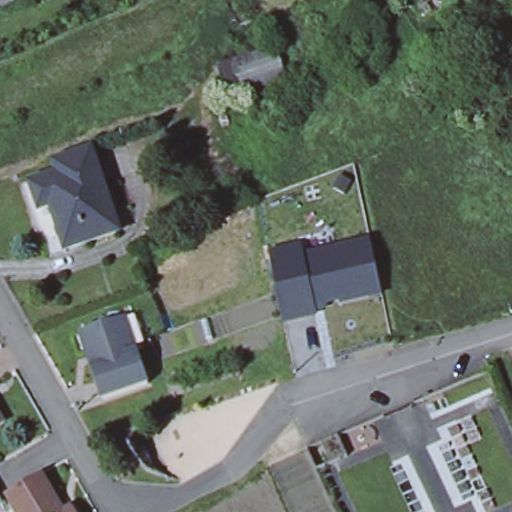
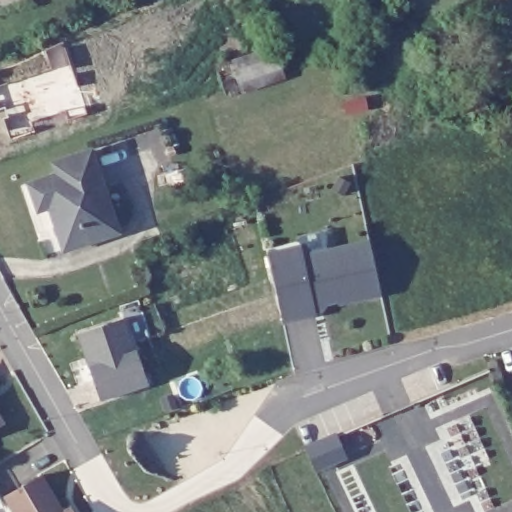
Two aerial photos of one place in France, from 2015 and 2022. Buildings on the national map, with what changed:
new [(52,70),(46,52),(66,44),(88,116),(69,122),(67,114),(31,124),(34,134),(11,139),(4,119),(8,118),(7,109),(0,111),(0,88),(52,70)]
unchanged [(216,62),(265,48),(275,82),(227,95),(216,62)]
unchanged [(68,245),(61,222),(44,228),(41,219),(36,205),(42,202),(34,179),(63,170),(59,158),(95,146),(96,147),(87,151),(98,182),(106,179),(110,192),(122,227),(68,245)]
unchanged [(383,300),(317,313),(319,320),(286,325),(272,253),(305,246),(308,255),(370,241),(383,300)]
unchanged [(77,331),(127,316),(149,386),(98,402),(77,331)]
new [(336,435),(345,456),(314,470),(305,449),(336,435)]
unchanged [(31,512),(17,487),(39,475),(60,512),(69,506),(72,512),(31,512)]
unchanged [(17,487),(31,512),(14,512),(4,495),(17,487)]

